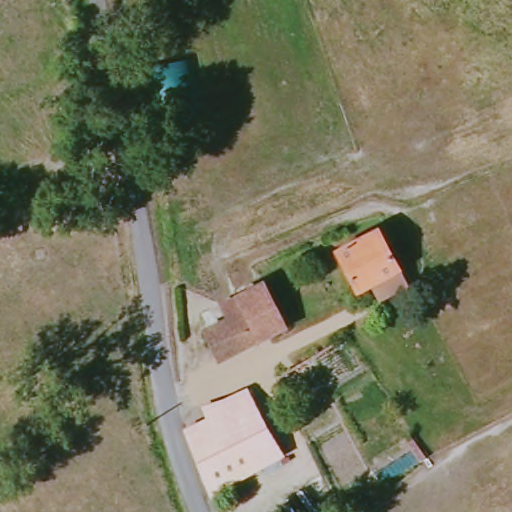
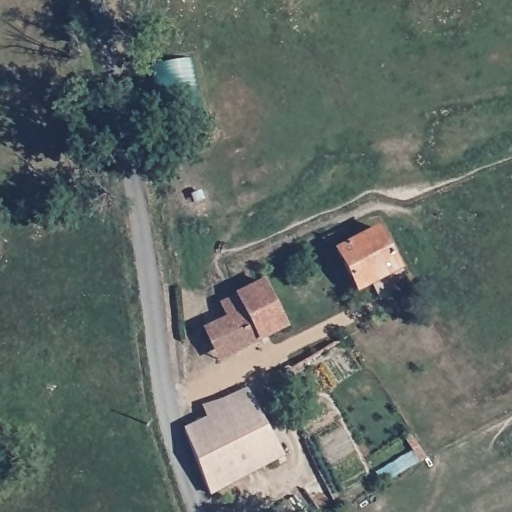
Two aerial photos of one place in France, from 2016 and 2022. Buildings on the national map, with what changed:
unchanged [(337,251),(378,229),(398,270),(357,291),(337,251)]
unchanged [(241,292),(268,278),(291,322),(263,336),(250,307),(241,292)]
unchanged [(223,355),(211,325),(250,307),(263,336),(223,355)]
unchanged [(210,418),(205,407),(225,401),(247,390),(260,415),(283,454),(210,494),(185,431),(210,418)]

